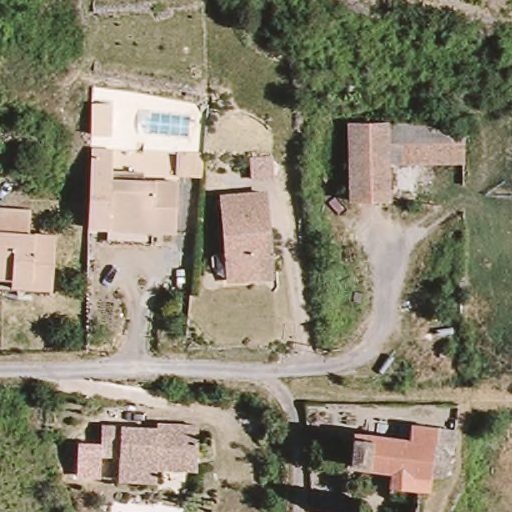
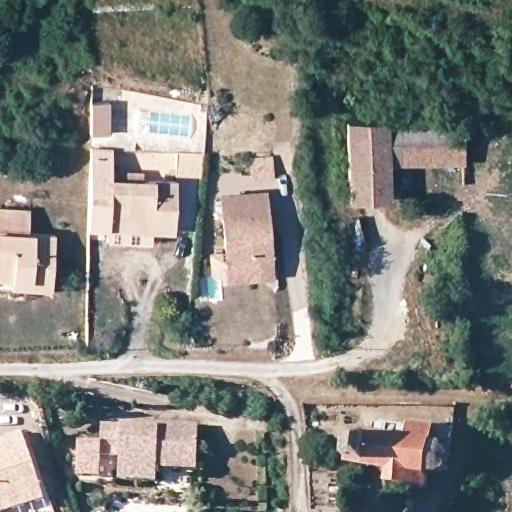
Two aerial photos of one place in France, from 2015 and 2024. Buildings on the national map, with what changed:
unchanged [(387,196),(350,194),(352,121),(377,123),(464,121),(464,160),(388,160),(387,196)]
unchanged [(105,229),(105,209),(86,209),(85,170),(112,172),(140,173),(142,182),(178,185),(177,233),(155,232),(130,230),(105,229)]
unchanged [(222,198),(271,194),(275,282),(227,280),(222,198)]
unchanged [(0,202),(34,205),(33,232),(60,233),(58,273),(57,288),(16,284),(15,270),(0,269),(0,202)]
unchanged [(448,466),(442,472),(427,471),(425,487),(385,481),(387,468),(362,465),(345,462),(350,426),(367,429),(386,432),(404,434),(405,419),(453,425),(450,449),(448,466)]
unchanged [(103,426),(201,431),(198,468),(160,466),(159,482),(120,483),(120,462),(102,460),(103,426)]
new [(43,501),(9,512),(0,512),(0,436),(20,430),(43,501)]
new [(103,444),(102,458),(100,458),(100,477),(76,478),(77,442),(103,444)]

